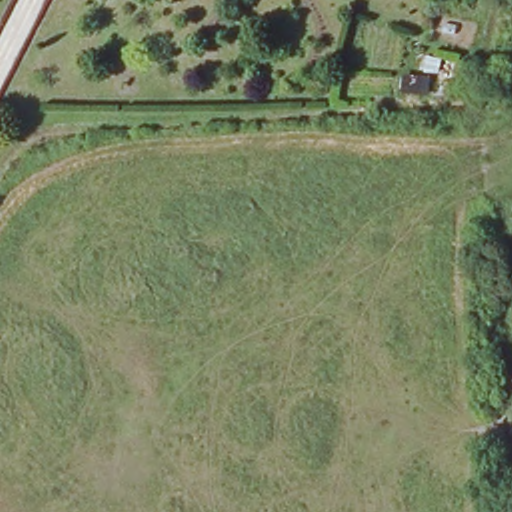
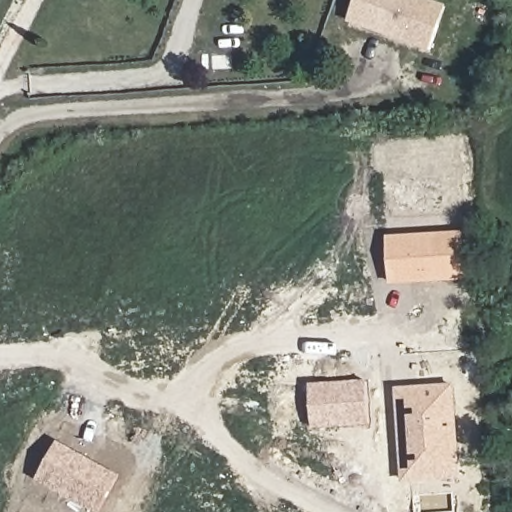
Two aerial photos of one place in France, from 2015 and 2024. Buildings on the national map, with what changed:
new [(446,5),(430,51),(348,21),(356,0),(431,0),(446,5)]
new [(386,236),(465,231),(468,281),(389,286),(388,261),(386,236)]
new [(312,429),(309,383),(367,380),(370,424),(312,429)]
new [(409,483),(407,477),(402,477),(396,389),(455,385),(461,479),(409,483)]
new [(58,441),(121,475),(100,512),(95,512),(37,480),(58,441)]

